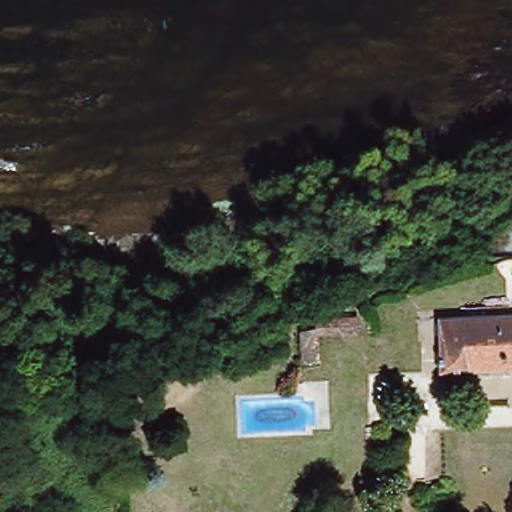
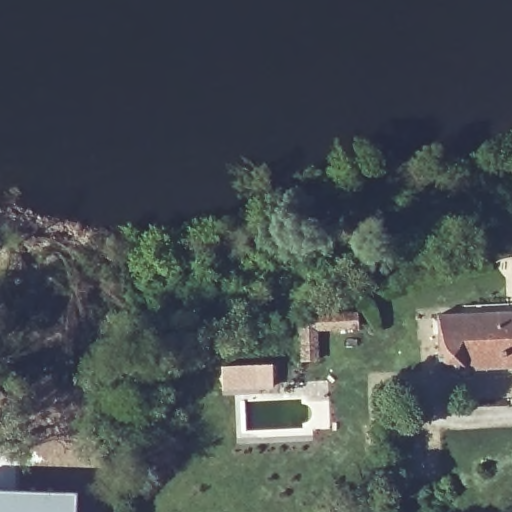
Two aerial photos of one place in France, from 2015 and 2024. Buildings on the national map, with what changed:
unchanged [(386,308),(359,308),(358,291),(386,291),(386,308)]
unchanged [(438,364),(438,357),(426,357),(426,317),(512,319),(512,365),(438,364)]
new [(273,387),(223,390),(222,365),(272,362),(273,387)]
new [(75,512),(0,512),(0,489),(75,492),(75,512)]

